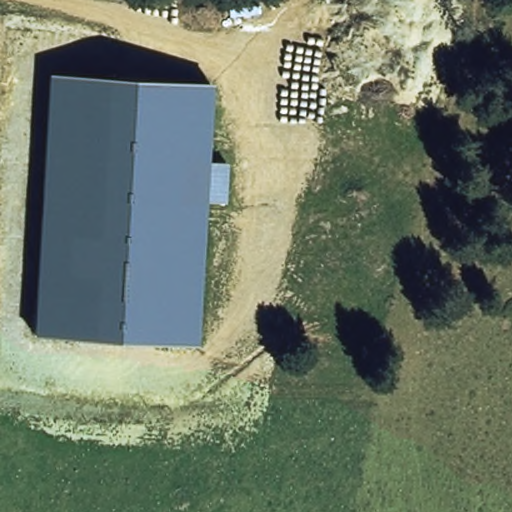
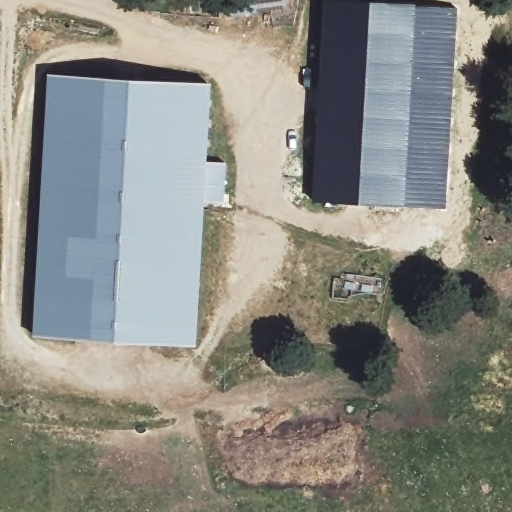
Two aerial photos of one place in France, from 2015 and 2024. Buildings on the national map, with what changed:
new [(324,1),(413,3),(402,205),(313,201),(324,1)]
unchanged [(30,336),(48,74),(209,84),(204,161),(226,163),(224,204),(203,202),(196,342),(30,336)]

